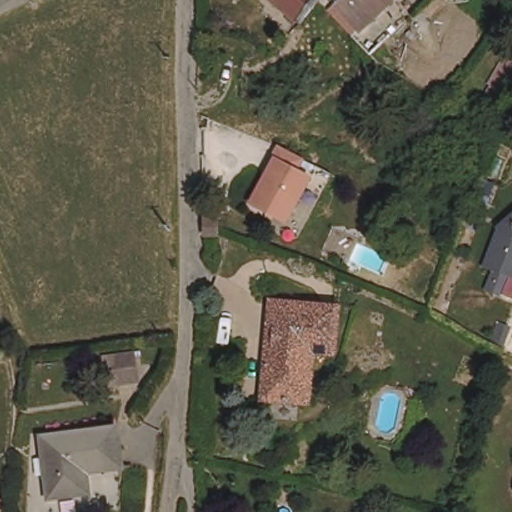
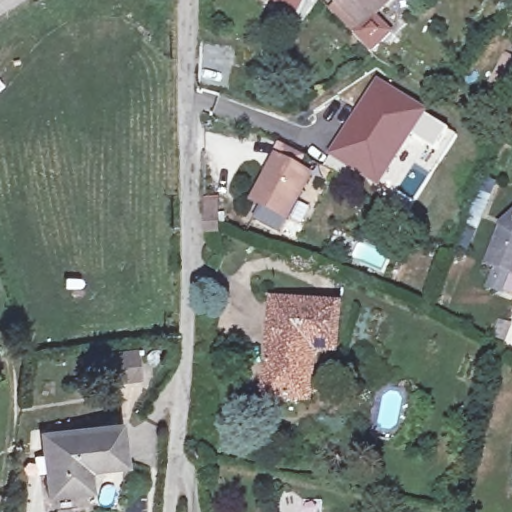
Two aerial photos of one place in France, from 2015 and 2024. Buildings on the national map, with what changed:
unchanged [(270,0),(312,0),(295,23),(270,0)]
unchanged [(339,4),(335,0),(395,0),(367,28),(339,4)]
unchanged [(503,109),(486,98),(493,84),(490,81),(506,55),(512,58),(512,95),(511,95),(503,109)]
new [(366,177),(332,155),(353,123),(357,124),(363,115),(360,114),(378,84),(425,114),(387,171),(378,185),(366,177)]
unchanged [(277,197),(290,170),(318,183),(311,196),(321,201),(298,246),(266,230),(281,199),(277,197)]
unchanged [(214,197),(214,226),(214,232),(196,232),(196,221),(196,197),(214,197)]
unchanged [(512,210),(512,266),(485,256),(502,218),(512,210)]
unchanged [(339,304),(336,354),(314,354),(310,399),(265,396),(270,302),(339,304)]
unchanged [(126,348),(130,372),(99,376),(95,352),(126,348)]
unchanged [(120,422),(125,460),(88,466),(89,485),(52,492),(45,433),(120,422)]

